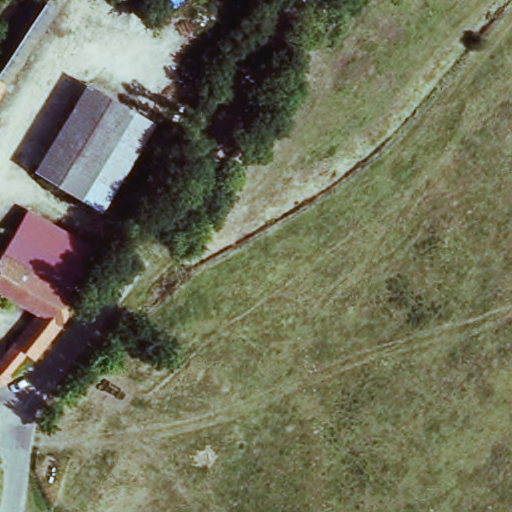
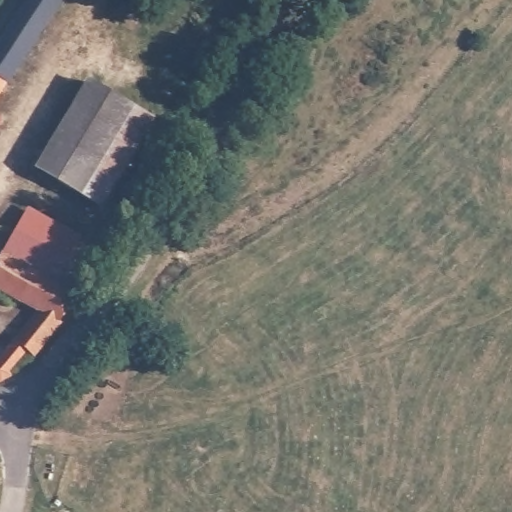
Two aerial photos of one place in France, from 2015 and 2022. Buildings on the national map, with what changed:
unchanged [(57,0),(0,87),(0,42),(29,0),(57,0)]
unchanged [(39,169),(89,84),(133,109),(83,194),(39,169)]
unchanged [(133,109),(152,120),(101,205),(83,194),(133,109)]
unchanged [(37,311),(0,291),(0,251),(32,206),(97,246),(66,293),(74,296),(9,382),(0,383),(0,355),(37,311)]

